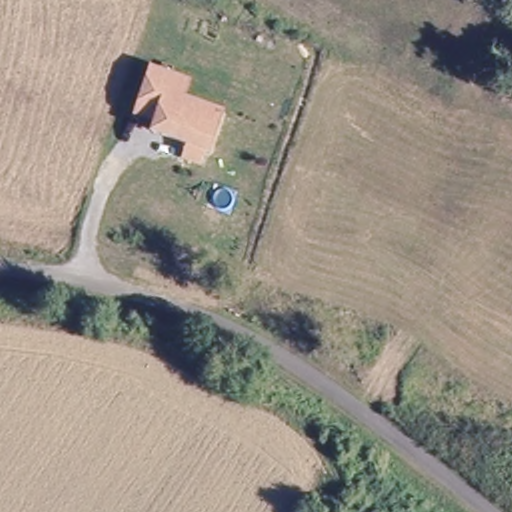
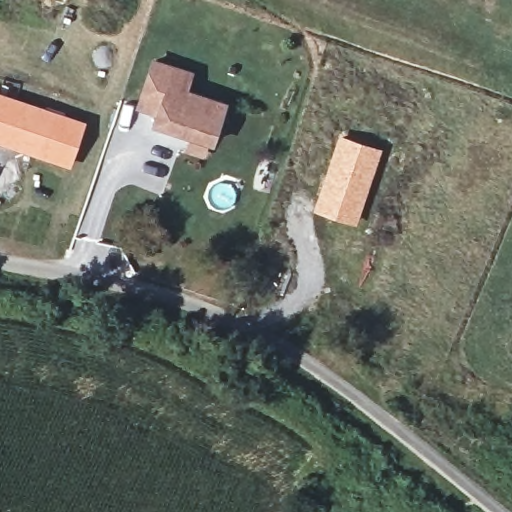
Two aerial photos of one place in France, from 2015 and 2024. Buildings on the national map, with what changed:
unchanged [(210,139),(155,120),(157,109),(137,102),(153,57),(175,66),(190,71),(185,88),(224,103),(210,139)]
new [(86,121),(70,170),(0,145),(0,91),(86,121)]
new [(339,134),(383,148),(357,225),(312,211),(339,134)]

